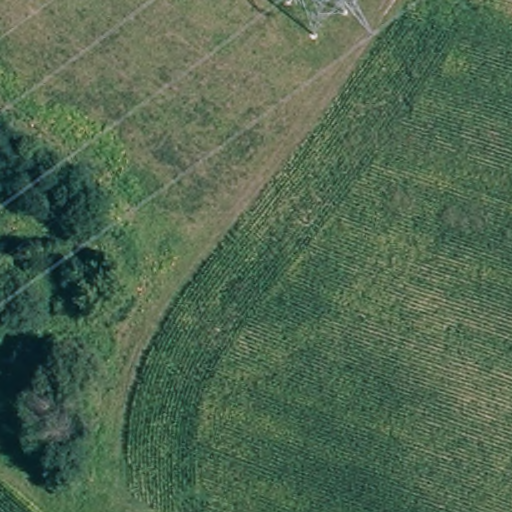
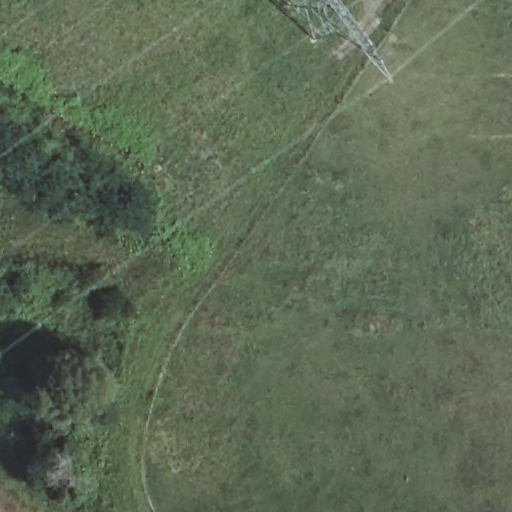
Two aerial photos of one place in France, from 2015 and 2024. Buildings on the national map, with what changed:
[]

